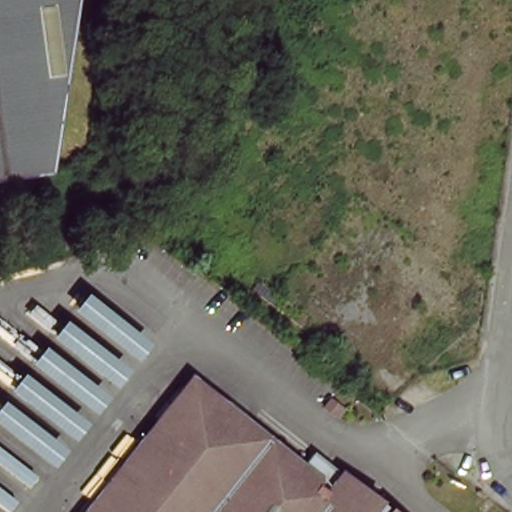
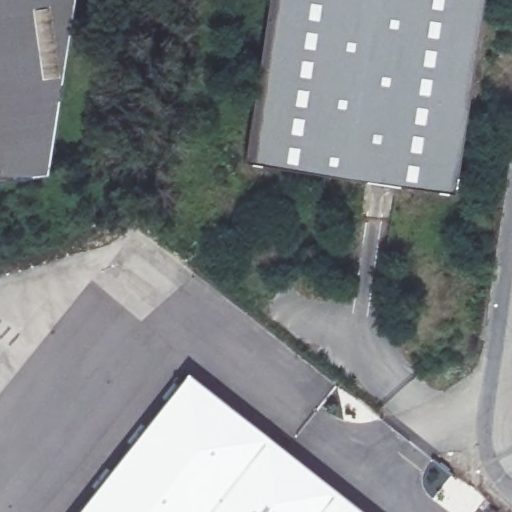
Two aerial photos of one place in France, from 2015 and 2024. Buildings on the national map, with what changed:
unchanged [(77,0),(52,174),(0,180),(0,0),(77,0)]
new [(244,163),(269,0),(484,0),(454,194),(244,163)]
unchanged [(188,375),(332,487),(319,503),(260,459),(217,512),(75,512),(188,375)]
unchanged [(342,473),(390,512),(217,512),(260,459),(319,503),(332,487),(342,473)]

